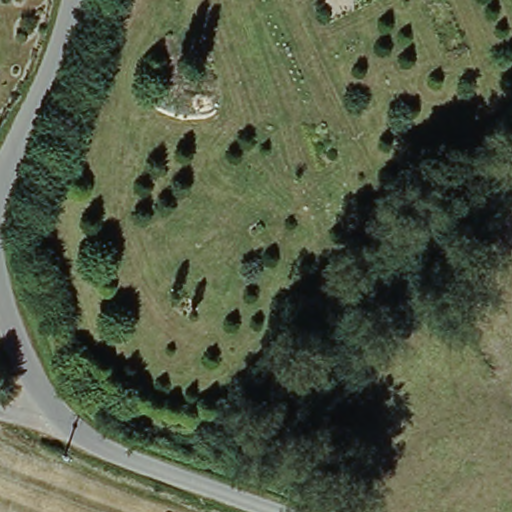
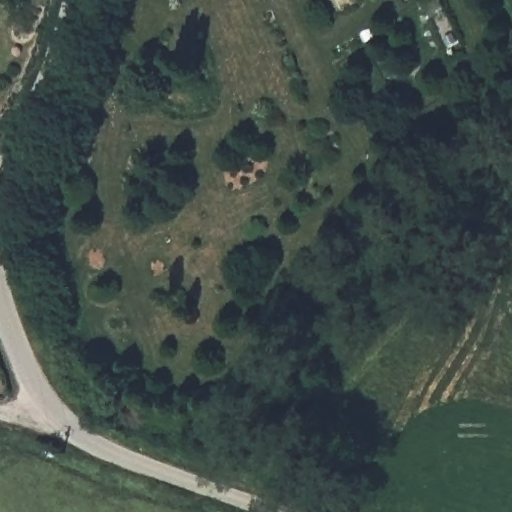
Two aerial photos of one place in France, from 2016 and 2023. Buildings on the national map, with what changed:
[]

